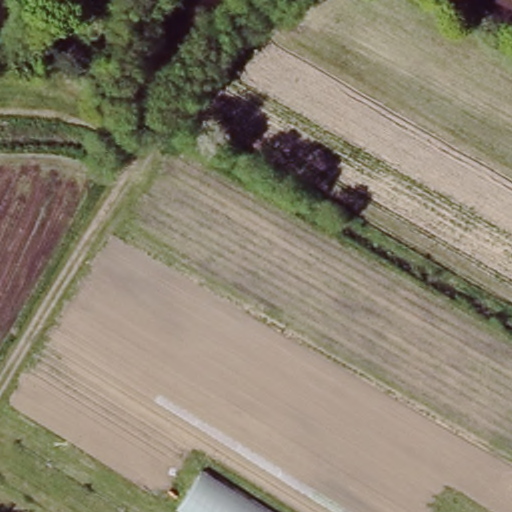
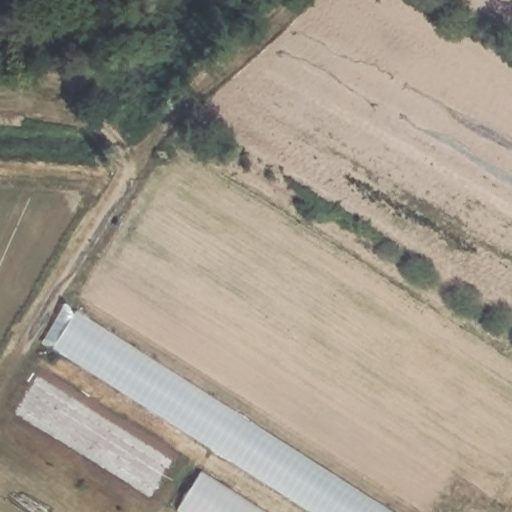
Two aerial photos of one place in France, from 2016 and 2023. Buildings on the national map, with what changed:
new [(75,310),(393,512),(310,512),(52,349),(75,310)]
unchanged [(201,470),(266,512),(184,512),(176,507),(201,470)]

